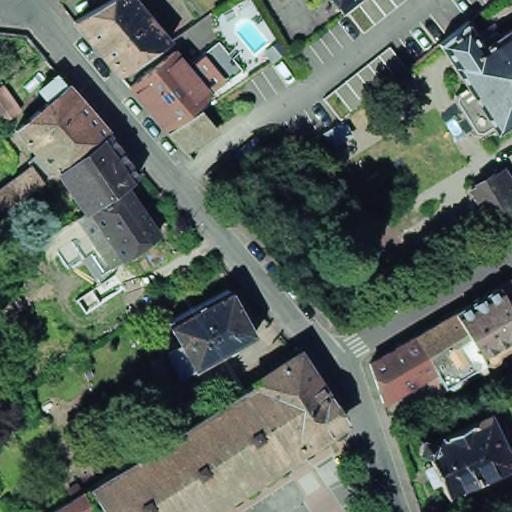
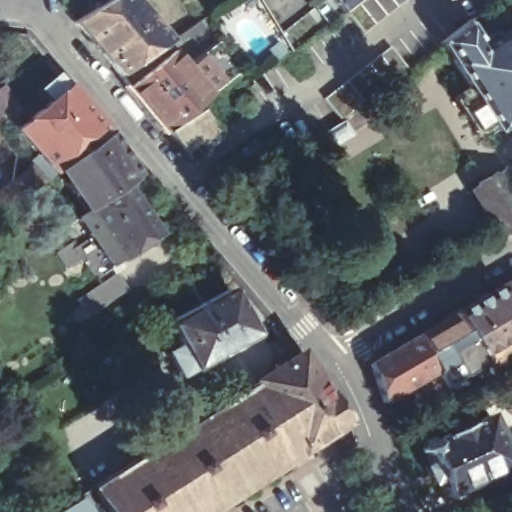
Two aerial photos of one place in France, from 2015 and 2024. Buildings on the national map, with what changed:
unchanged [(100,0),(132,0),(170,45),(140,66),(120,79),(76,27),(105,9),(100,0)]
unchanged [(334,0),(362,0),(345,13),(344,13),(334,0)]
unchanged [(470,131),(451,101),(452,93),(463,87),(435,44),(460,24),(469,36),(489,24),(493,31),(497,36),(512,26),(512,119),(492,131),(488,126),(477,133),(470,131)]
unchanged [(221,46),(245,75),(213,100),(190,72),(221,46)]
unchanged [(132,93),(177,56),(190,72),(213,100),(168,136),(132,93)]
unchanged [(35,242),(62,223),(73,216),(80,211),(81,211),(61,181),(67,177),(58,164),(50,171),(38,179),(37,180),(18,195),(0,209),(0,188),(8,182),(28,166),(26,163),(35,155),(12,129),(47,100),(37,89),(57,73),(65,84),(106,131),(107,133),(133,174),(133,175),(84,209),(86,212),(122,187),(154,233),(117,259),(116,258),(106,265),(87,237),(77,244),(57,257),(49,263),(35,242)]
unchanged [(22,110),(0,126),(0,88),(4,85),(22,110)]
unchanged [(168,136),(186,124),(202,113),(203,114),(218,133),(185,156),(168,136)]
unchanged [(342,120),(345,125),(351,135),(333,146),(325,132),(342,120)]
unchanged [(234,156),(252,177),(238,186),(223,196),(205,175),(220,165),(234,156)]
unchanged [(484,217),(467,190),(493,174),(510,201),(512,206),(512,225),(495,235),(484,217)]
unchanged [(419,337),(461,312),(505,286),(512,283),(512,350),(507,352),(512,360),(512,365),(496,372),(453,390),(441,372),(419,337)]
unchanged [(170,358),(184,350),(170,326),(230,293),(255,342),(197,374),(196,372),(182,379),(170,358)]
unchanged [(441,372),(389,403),(375,363),(419,337),(441,372)]
unchanged [(75,496),(85,490),(90,497),(98,492),(107,486),(115,481),(143,463),(133,448),(157,433),(180,417),(190,432),(263,386),(300,362),(304,359),(325,392),(332,401),(336,408),(340,413),(350,428),(308,454),(310,456),(288,470),(287,468),(273,477),(274,479),(270,482),(268,480),(255,489),(255,491),(252,493),(250,491),(237,500),(238,502),(223,512),(67,512),(80,504),(75,496)]
unchanged [(512,382),(512,407),(502,386),(512,382)]
unchanged [(425,470),(430,467),(423,453),(420,455),(416,448),(423,444),(425,448),(490,420),(507,456),(512,454),(512,464),(510,465),(512,468),(512,471),(446,501),(438,485),(432,488),(425,470)]

